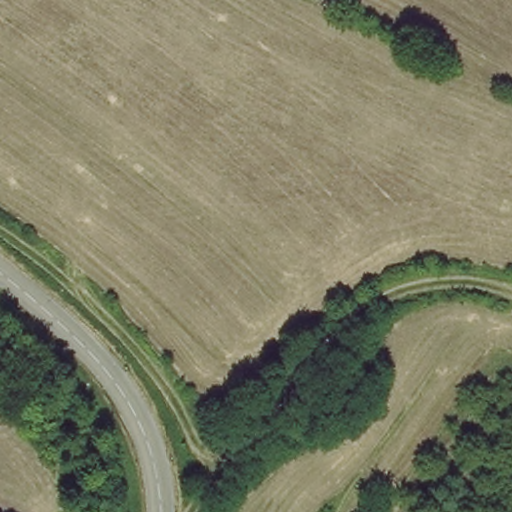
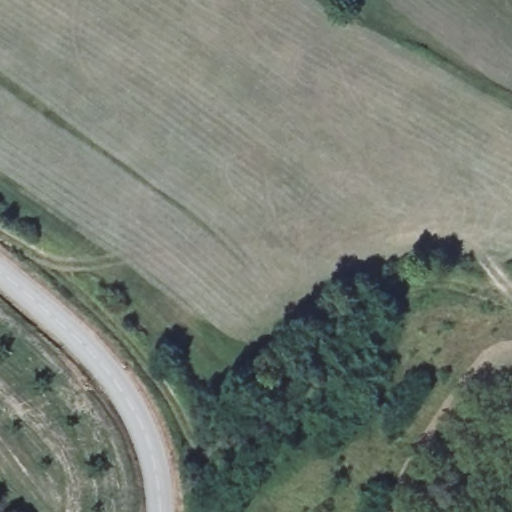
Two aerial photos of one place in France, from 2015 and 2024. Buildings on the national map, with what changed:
[]

